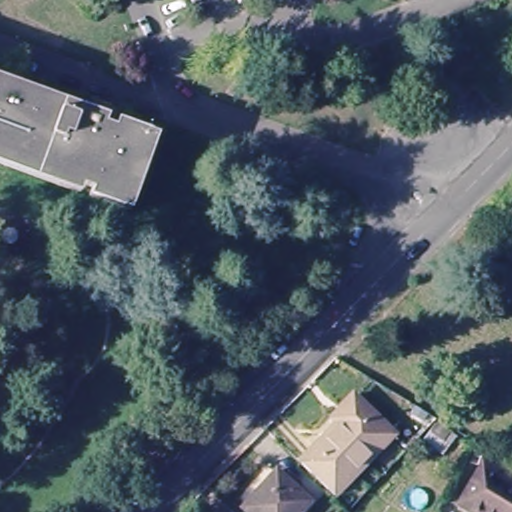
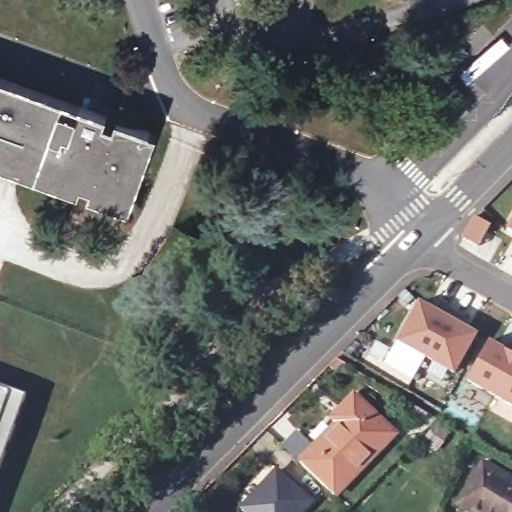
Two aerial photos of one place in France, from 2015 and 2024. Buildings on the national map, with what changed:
unchanged [(134,210),(100,198),(102,190),(0,155),(0,75),(161,130),(134,210)]
new [(509,230),(512,224),(512,232),(509,230)]
demolished [(503,306),(497,268),(512,267),(512,305),(503,306)]
new [(398,342),(418,305),(433,311),(436,305),(463,319),(460,327),(474,334),(452,373),(398,342)]
new [(466,381),(488,343),(503,351),(507,344),(512,346),(512,407),(466,381)]
unchanged [(400,428),(332,501),(297,468),(343,420),(337,414),(344,406),(361,387),(400,428)]
new [(0,474),(0,388),(27,398),(0,474)]
unchanged [(427,444),(441,423),(455,432),(442,454),(427,444)]
unchanged [(459,504),(483,464),(512,481),(512,512),(472,512),(459,504)]
unchanged [(239,508),(272,471),(306,501),(296,512),(244,512),(239,508)]

